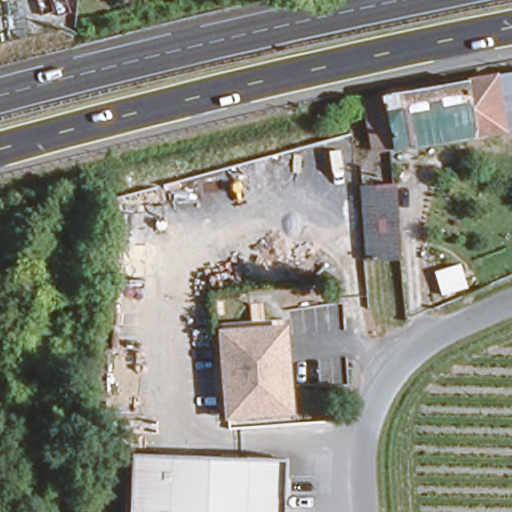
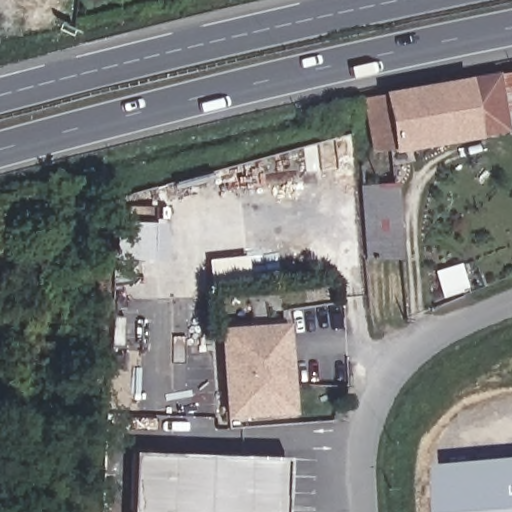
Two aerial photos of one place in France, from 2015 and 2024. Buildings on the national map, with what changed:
unchanged [(395,92),(512,71),(512,127),(399,145),(395,92)]
unchanged [(396,146),(375,150),(370,96),(395,92),(399,145),(396,146)]
unchanged [(368,257),(369,184),(398,182),(402,256),(368,257)]
unchanged [(457,260),(467,289),(442,297),(430,269),(457,260)]
unchanged [(77,317),(76,351),(45,349),(49,287),(96,290),(95,318),(77,317)]
unchanged [(220,324),(283,321),(283,335),(283,343),(286,419),(224,422),(220,324)]
unchanged [(285,455),(283,512),(126,512),(128,451),(285,455)]
new [(512,458),(512,512),(445,512),(440,465),(512,458)]

